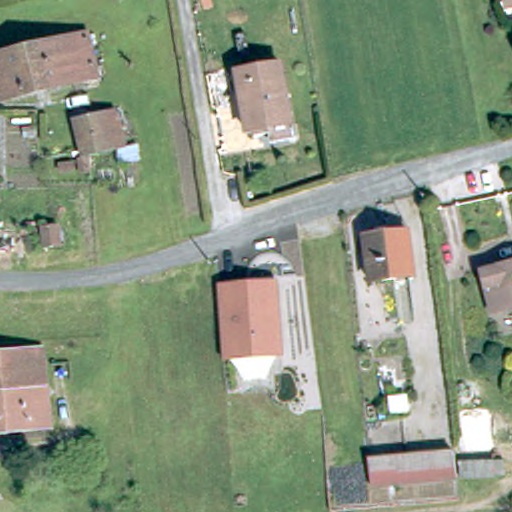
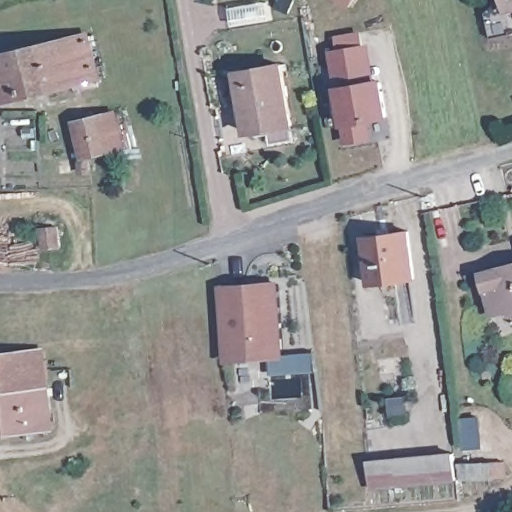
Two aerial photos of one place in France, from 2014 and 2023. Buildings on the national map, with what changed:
new [(293,0),(287,13),(275,8),(278,0),(293,0)]
unchanged [(512,0),(512,10),(505,11),(503,0),(512,0)]
unchanged [(88,40),(93,61),(103,59),(108,76),(97,79),(0,101),(0,99),(0,61),(30,54),(88,40)]
new [(377,79),(384,78),(391,118),(372,121),(374,139),(345,144),(342,126),(336,86),(330,51),(370,43),(377,79)]
unchanged [(294,127),(247,136),(235,76),(282,68),(294,127)]
unchanged [(118,151),(87,159),(78,124),(110,116),(118,151)]
unchanged [(2,205),(0,205),(0,195),(2,195),(2,205)]
unchanged [(415,280),(373,286),(365,240),(410,234),(415,280)]
unchanged [(486,279),(512,270),(512,325),(502,328),(486,279)]
unchanged [(280,279),(285,357),(225,362),(219,283),(280,279)]
unchanged [(55,435),(0,441),(0,362),(47,358),(55,435)]
unchanged [(458,484),(374,491),(371,466),(457,459),(458,484)]

